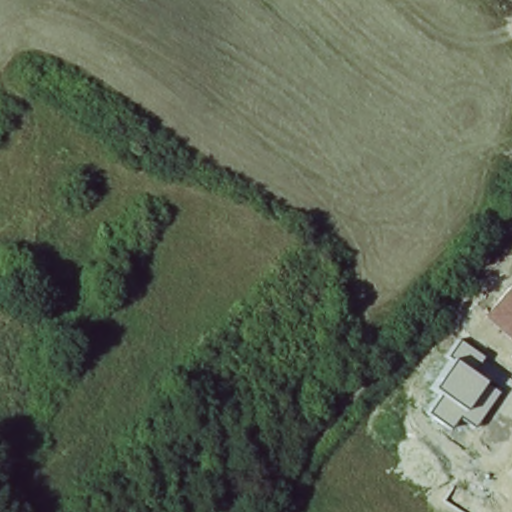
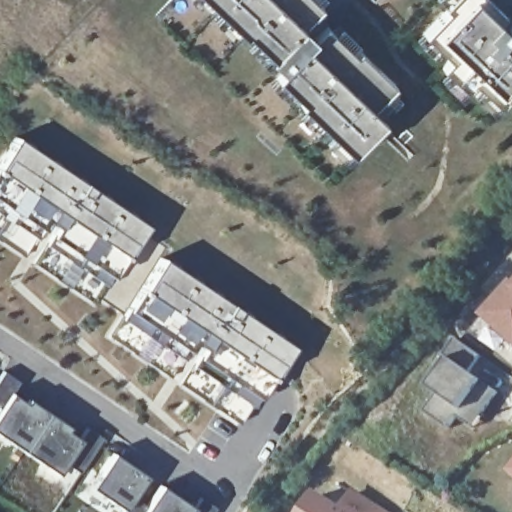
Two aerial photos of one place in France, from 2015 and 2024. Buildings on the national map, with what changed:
new [(319,3),(313,10),(331,27),(338,21),(354,38),(349,44),(355,50),(358,47),(393,81),(388,87),(394,93),(378,113),(382,117),(341,157),(324,139),(331,132),(322,123),(316,130),(297,113),(306,104),(293,90),(286,97),(268,80),(281,67),(269,55),(264,61),(247,43),(253,37),(246,29),(241,31),(236,26),(229,33),(213,16),(219,10),(211,1),(202,8),(194,0),(316,0),(319,3)]
new [(502,11),(497,17),(507,28),(512,22),(512,89),(492,110),(474,92),(479,86),(473,79),(458,93),(439,76),(447,69),(440,62),(448,53),(440,46),(433,53),(414,37),(444,4),(440,0),(490,0),(502,11)]
new [(105,292),(0,217),(0,167),(16,144),(144,232),(105,292)]
new [(292,348),(253,409),(121,321),(161,261),(292,348)]
unchanged [(510,283),(512,284),(512,341),(484,315),(510,283)]
unchanged [(439,394),(432,388),(453,361),(444,355),(456,339),(482,357),(474,372),(498,389),(473,426),(457,415),(446,428),(424,413),(439,394)]
new [(19,386),(13,396),(79,441),(85,431),(101,441),(78,477),(61,468),(51,484),(0,451),(0,379),(2,375),(19,386)]
new [(152,465),(169,476),(161,486),(194,509),(199,502),(213,510),(213,512),(144,512),(146,509),(129,498),(121,512),(103,512),(85,499),(113,455),(145,477),(152,465)]
unchanged [(511,473),(512,472),(512,474),(511,473)]
new [(342,505),(351,489),(389,512),(303,512),(316,491),(342,505)]

